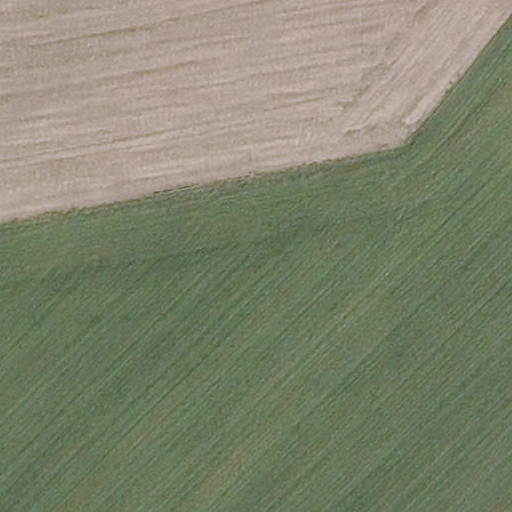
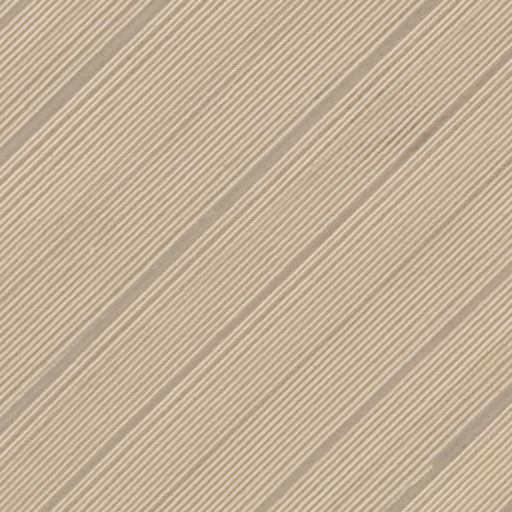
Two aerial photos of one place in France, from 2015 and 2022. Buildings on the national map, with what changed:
[]

